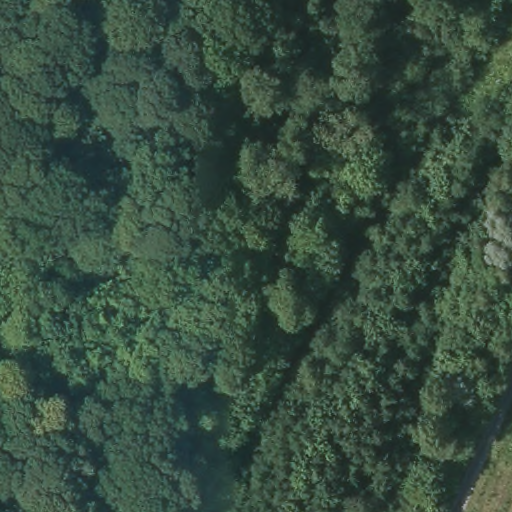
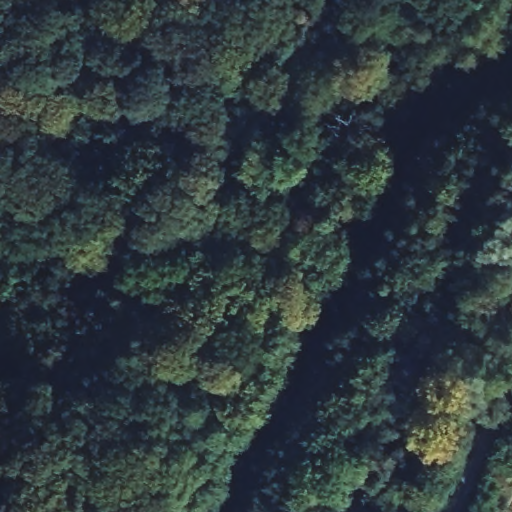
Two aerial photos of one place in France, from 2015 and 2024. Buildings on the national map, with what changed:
[]

